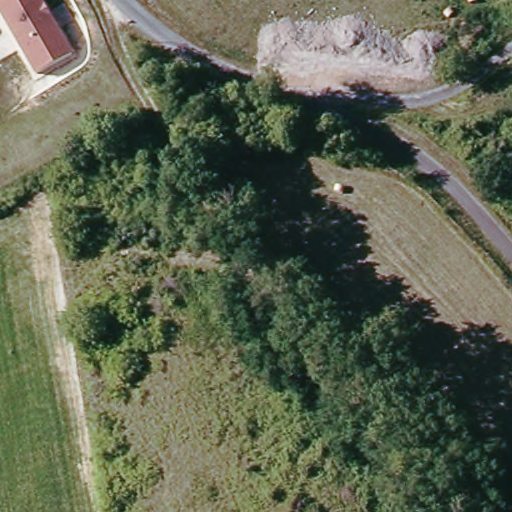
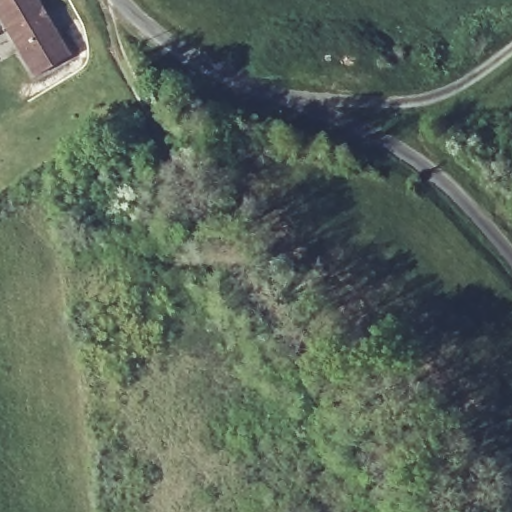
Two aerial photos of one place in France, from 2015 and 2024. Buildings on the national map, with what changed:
unchanged [(72,54),(38,76),(0,16),(0,0),(38,0),(72,54)]

